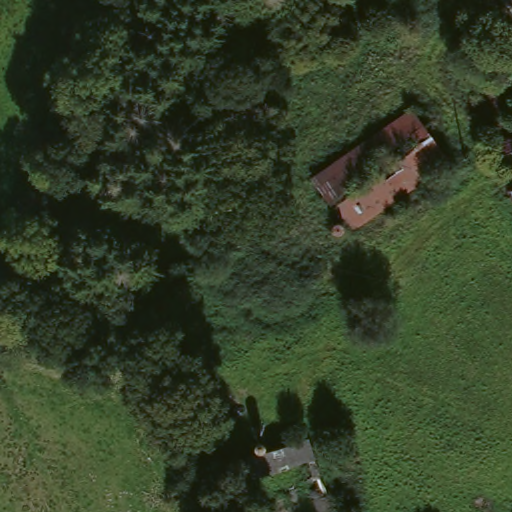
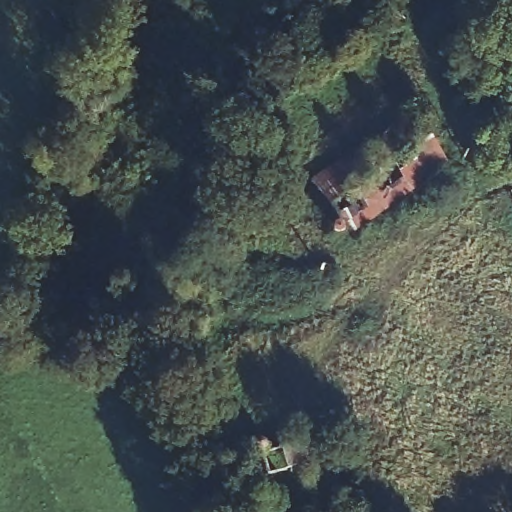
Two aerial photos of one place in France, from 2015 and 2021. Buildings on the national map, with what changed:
unchanged [(310,181),(359,147),(410,112),(447,165),(399,199),(347,235),(310,181)]

